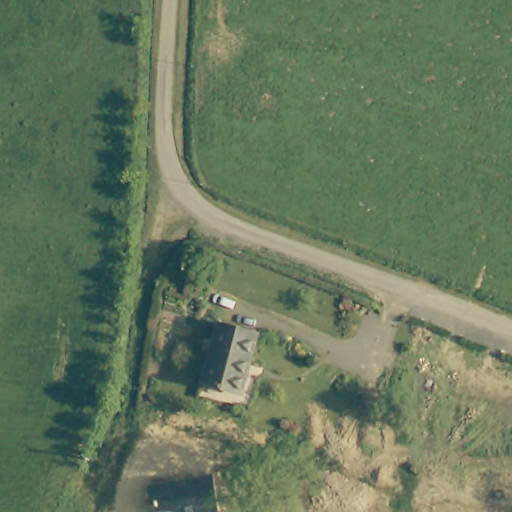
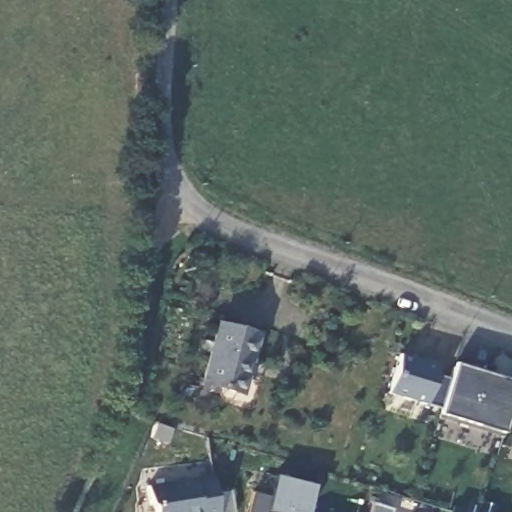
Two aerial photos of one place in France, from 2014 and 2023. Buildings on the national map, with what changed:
unchanged [(240,390),(203,380),(222,321),(262,333),(240,390)]
new [(502,433),(440,414),(442,408),(426,404),(388,393),(400,354),(420,360),(422,357),(439,363),(436,374),(451,378),(456,365),(512,382),(512,400),(502,433)]
new [(274,475),(314,485),(307,512),(269,512),(265,511),(274,475)]
unchanged [(219,512),(155,512),(151,485),(214,476),(219,512)]
new [(391,510),(390,512),(369,512),(372,503),(391,510)]

